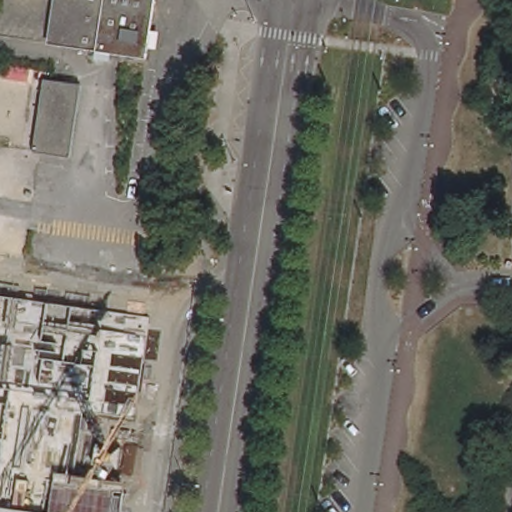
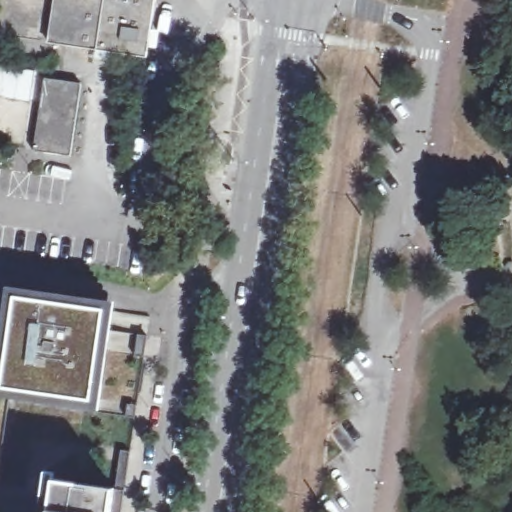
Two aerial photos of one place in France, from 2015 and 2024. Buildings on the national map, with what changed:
unchanged [(47,42),(53,0),(152,0),(143,56),(47,42)]
unchanged [(47,78),(82,82),(72,154),(36,149),(47,78)]
new [(17,276),(15,288),(5,287),(0,327),(0,273),(17,276)]
new [(8,397),(0,396),(0,327),(5,287),(15,288),(114,302),(98,410),(8,397)]
new [(8,397),(0,461),(0,396),(8,397)]
new [(48,511),(52,480),(115,488),(120,451),(130,452),(122,512),(48,512),(48,511)]
new [(48,512),(0,512),(0,505),(48,511),(48,512)]

